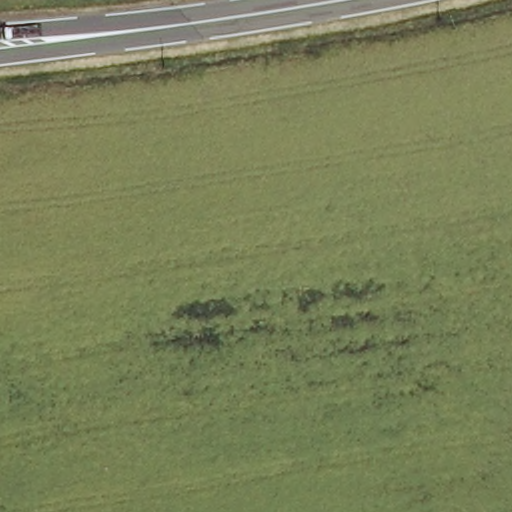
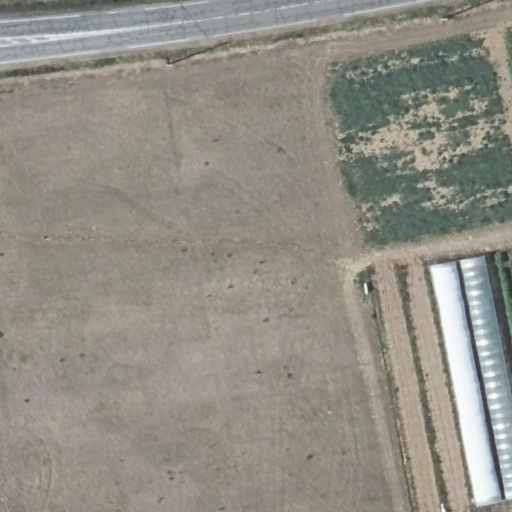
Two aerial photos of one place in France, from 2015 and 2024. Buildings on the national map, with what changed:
new [(486,255),(512,395),(512,499),(504,500),(477,383),(455,261),(486,255)]
new [(455,261),(477,383),(504,500),(476,506),(430,266),(455,261)]

